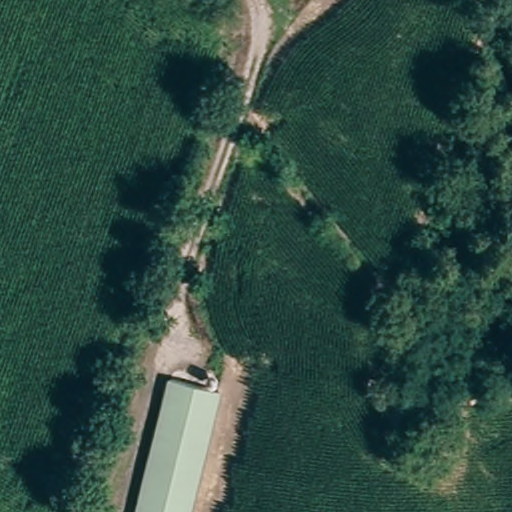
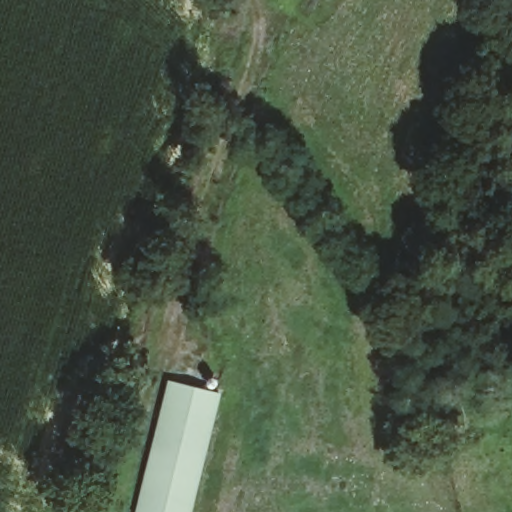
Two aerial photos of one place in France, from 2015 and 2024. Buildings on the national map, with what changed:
unchanged [(166,378),(214,389),(187,512),(137,512),(166,378)]

